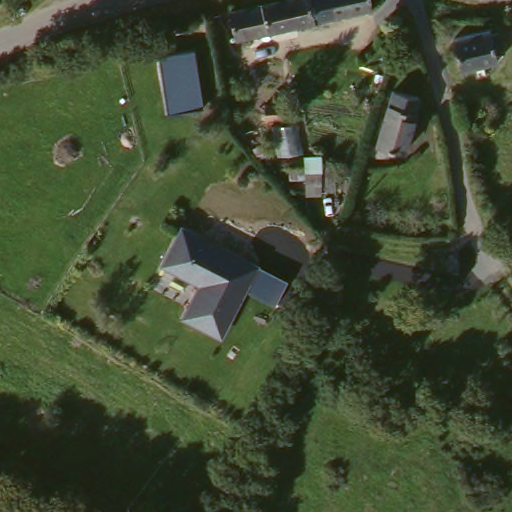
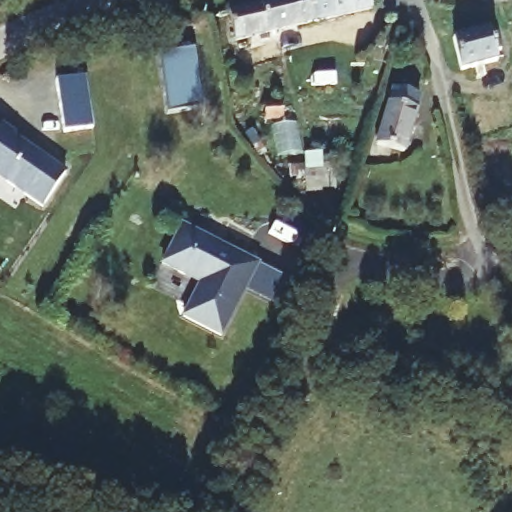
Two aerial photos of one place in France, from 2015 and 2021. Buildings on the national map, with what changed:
unchanged [(236,37),(230,10),(278,0),(310,0),(313,19),(236,37)]
unchanged [(363,9),(323,17),(313,19),(310,0),(380,0),(381,9),(364,14),(363,9)]
unchanged [(498,56),(466,66),(458,35),(489,26),(498,56)]
unchanged [(196,47),(206,107),(171,114),(160,54),(196,47)]
new [(55,80),(85,75),(93,127),(63,131),(55,80)]
unchanged [(411,110),(414,110),(403,155),(381,152),(395,90),(416,94),(411,110)]
unchanged [(286,110),(283,95),(296,92),(299,109),(286,110)]
new [(43,208),(0,179),(0,128),(1,127),(66,172),(43,208)]
unchanged [(244,290),(218,337),(181,316),(199,283),(178,271),(162,263),(171,247),(183,226),(242,259),(257,267),(288,281),(276,307),(244,290)]

